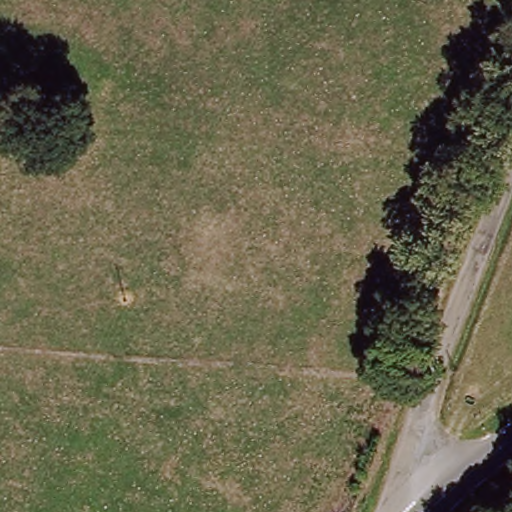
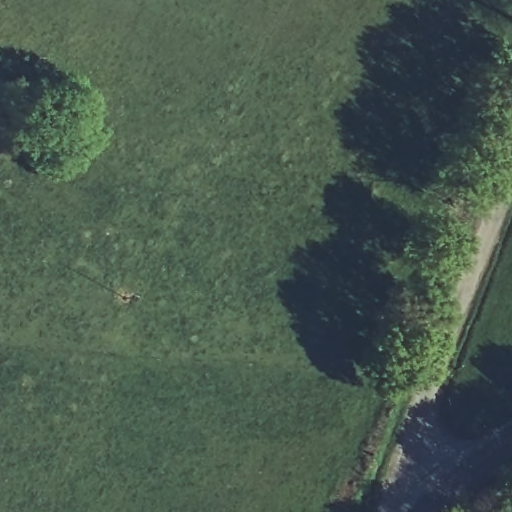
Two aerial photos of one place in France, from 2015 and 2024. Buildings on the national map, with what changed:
[]

